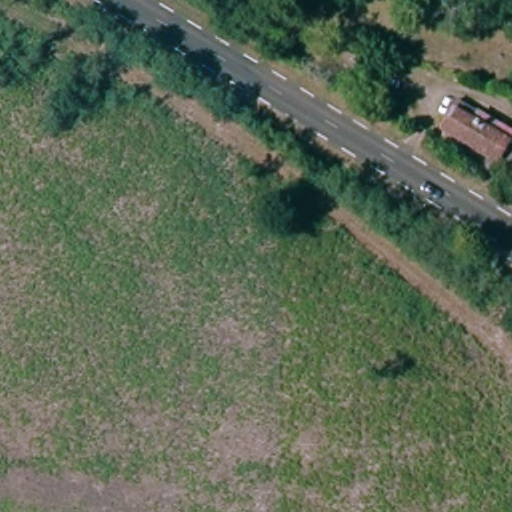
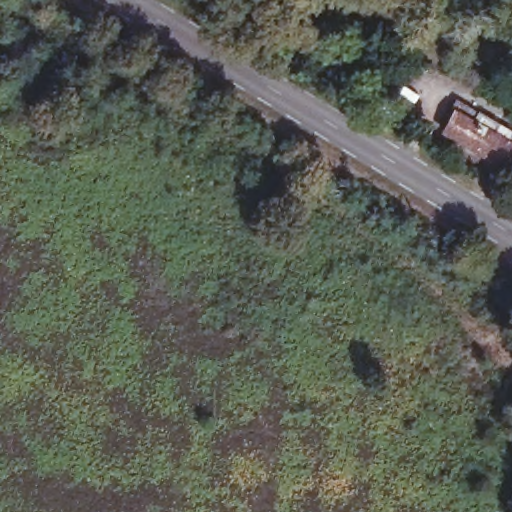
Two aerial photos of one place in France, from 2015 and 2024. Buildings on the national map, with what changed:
unchanged [(512,147),(505,160),(447,125),(456,108),(512,141),(512,147)]

